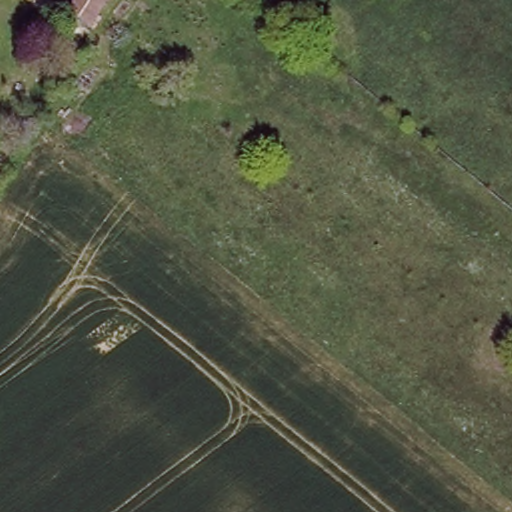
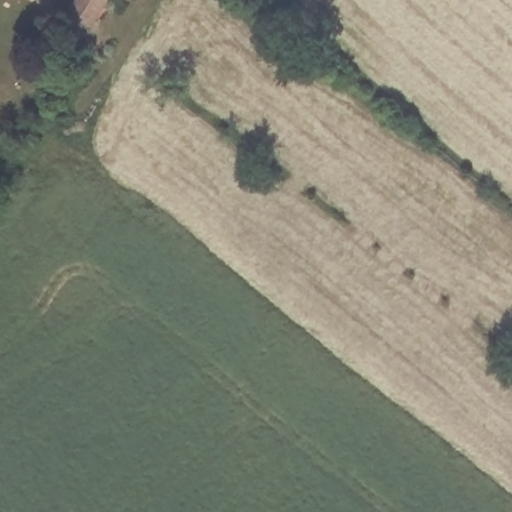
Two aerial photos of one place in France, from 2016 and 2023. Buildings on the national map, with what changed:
unchanged [(106,0),(91,27),(70,15),(80,0),(106,0)]

